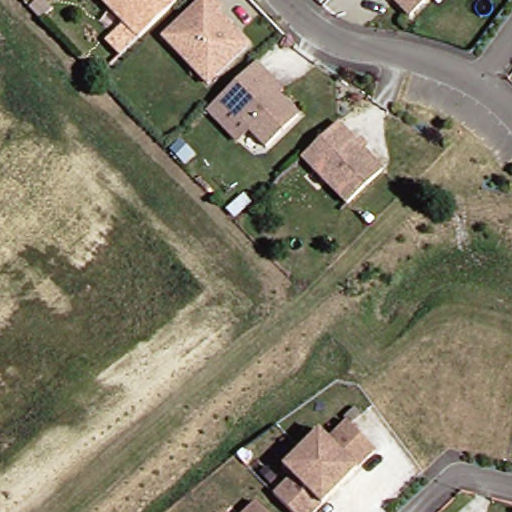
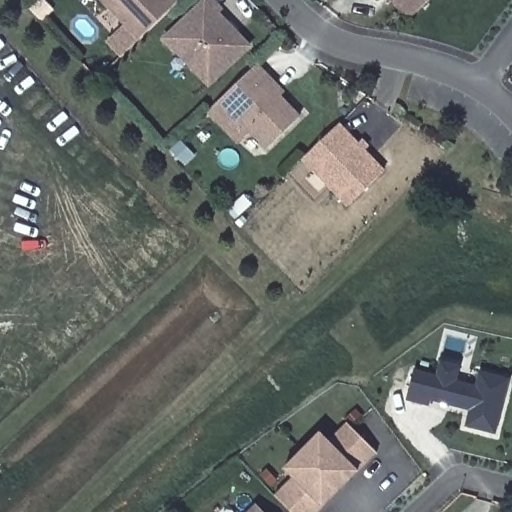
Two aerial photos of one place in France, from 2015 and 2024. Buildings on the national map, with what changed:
unchanged [(35,0),(44,0),(52,8),(39,20),(28,7),(35,0)]
unchanged [(164,17),(161,19),(118,60),(107,49),(128,30),(123,24),(100,0),(168,0),(174,7),(164,17)]
unchanged [(185,59),(161,34),(198,0),(213,0),(218,5),(214,9),(246,42),(214,73),(205,81),(185,59)]
unchanged [(408,16),(392,0),(425,0),(408,16)]
unchanged [(268,78),(283,93),(279,97),(300,120),(268,150),(252,132),(240,143),(210,112),(258,66),(268,78)]
unchanged [(368,165),(379,176),(344,209),(300,163),(335,130),(368,165)]
new [(436,374),(440,359),(459,364),(455,379),(475,384),(478,369),(509,377),(494,432),(464,424),(469,408),(429,398),(428,404),(406,398),(413,368),(436,374)]
unchanged [(317,439),(324,446),(348,424),(376,454),(314,512),(284,512),(269,497),(288,479),(281,472),(317,439)]
unchanged [(254,512),(248,512),(251,509),(254,512)]

